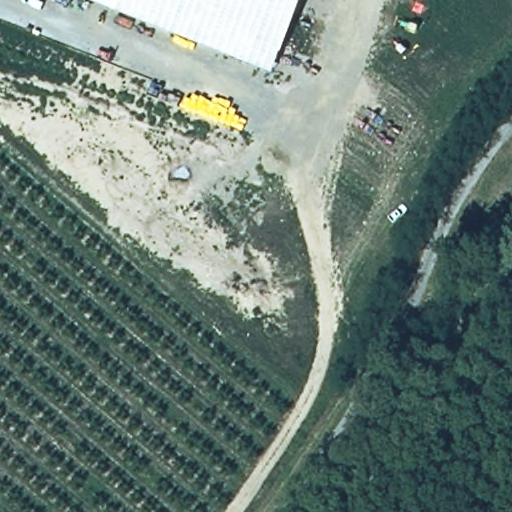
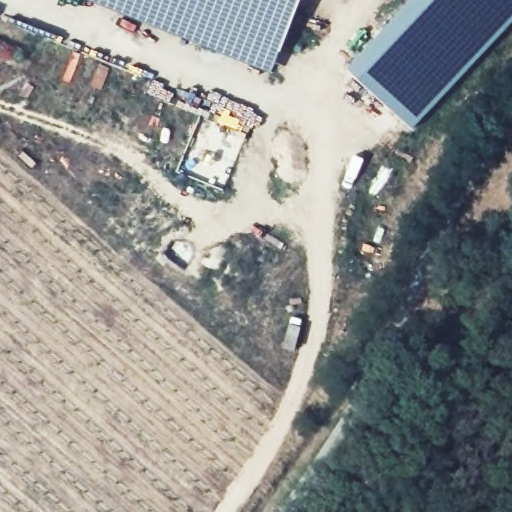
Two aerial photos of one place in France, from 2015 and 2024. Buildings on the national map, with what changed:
unchanged [(272,71),(92,0),(301,0),(272,71)]
new [(412,130),(347,68),(410,0),(512,0),(512,22),(412,130)]

